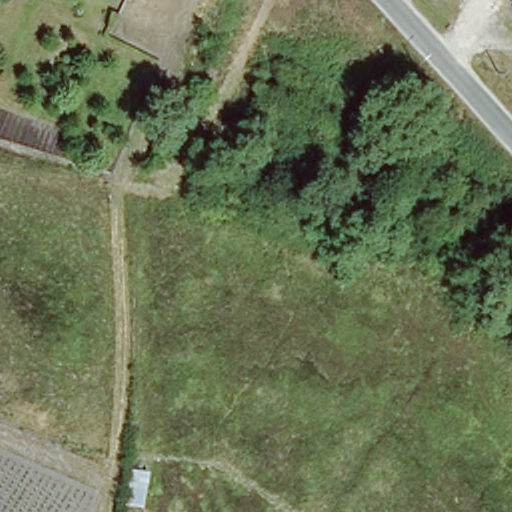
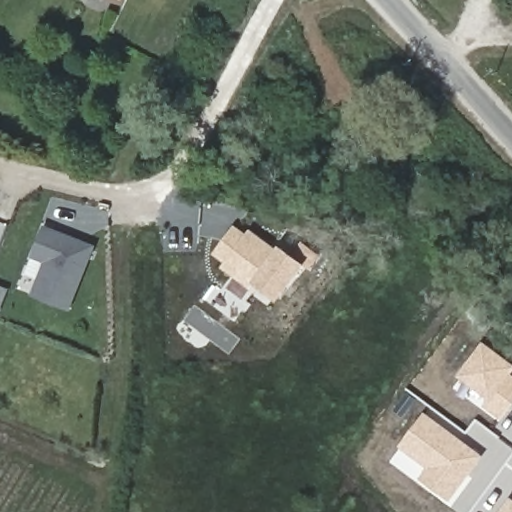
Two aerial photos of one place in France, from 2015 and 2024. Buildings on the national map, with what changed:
new [(32,258),(45,225),(96,245),(70,311),(32,295),(44,262),(32,258)]
new [(235,225),(247,233),(251,229),(277,247),(280,244),(292,253),(303,241),(322,255),(312,270),(306,265),(280,302),(256,285),(245,299),(228,287),(235,278),(222,267),(225,262),(213,254),(235,225)]
new [(0,313),(0,312),(0,286),(9,290),(0,313)]
new [(459,375),(485,341),(512,360),(512,409),(503,421),(485,407),(492,398),(459,375)]
new [(425,412),(484,456),(450,501),(420,479),(428,468),(399,447),(425,412)]
new [(512,498),(512,512),(501,512),(511,498),(512,498)]

